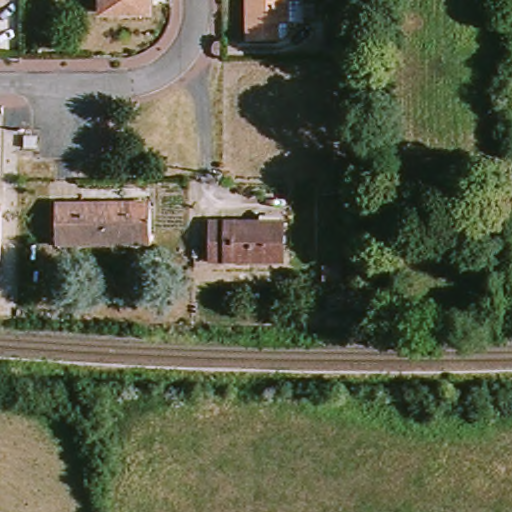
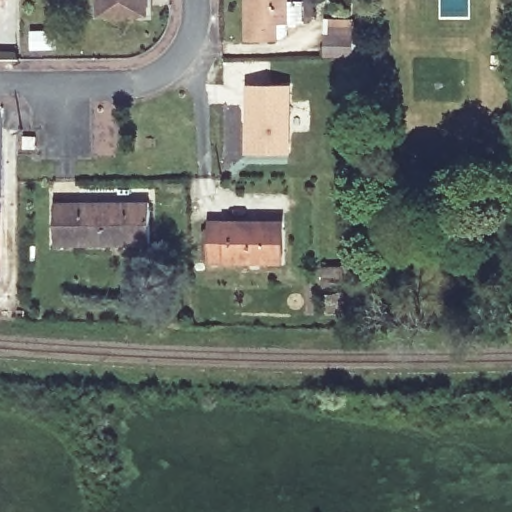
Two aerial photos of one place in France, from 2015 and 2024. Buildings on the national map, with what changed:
unchanged [(148,14),(103,16),(102,0),(148,0),(148,14)]
unchanged [(303,5),(303,22),(287,22),(287,30),(286,34),(282,35),(248,36),(248,0),(287,0),(287,5),(303,5)]
new [(328,33),(327,18),(354,17),(356,59),(324,59),(323,34),(328,33)]
new [(244,84),(292,83),(292,153),(244,154),(244,84)]
unchanged [(159,205),(159,245),(64,245),(64,205),(159,205)]
unchanged [(207,263),(207,222),(279,222),(279,263),(207,263)]
unchanged [(349,266),(350,280),(331,280),(331,267),(349,266)]

